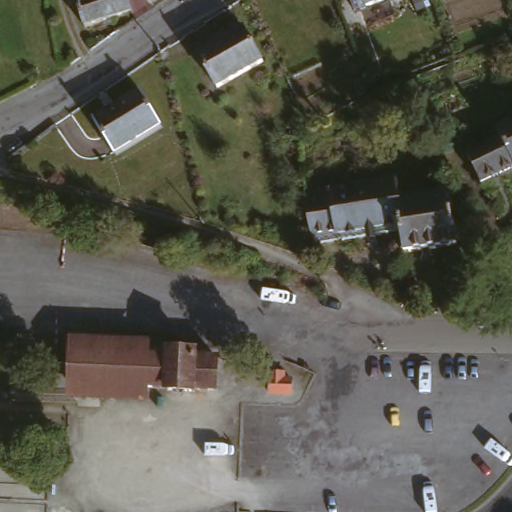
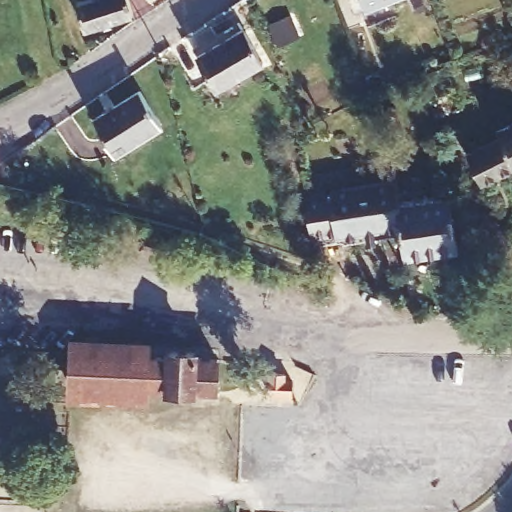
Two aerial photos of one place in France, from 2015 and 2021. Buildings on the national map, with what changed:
unchanged [(136,13),(90,27),(82,0),(132,0),(136,13)]
unchanged [(363,6),(361,0),(380,0),(363,6)]
unchanged [(214,86),(195,50),(243,26),(261,62),(214,86)]
unchanged [(112,151),(93,115),(141,90),(159,125),(112,151)]
unchanged [(504,134),(512,130),(512,162),(507,143),(504,134)]
unchanged [(476,160),(507,143),(512,162),(512,175),(493,187),(476,160)]
unchanged [(402,209),(406,232),(343,243),(342,241),(320,244),(312,197),(337,193),(338,195),(402,186),(406,208),(402,209)]
unchanged [(461,250),(411,259),(406,232),(402,209),(406,208),(425,205),(453,201),(461,250)]
unchanged [(73,336),(164,338),(163,345),(221,350),(220,393),(154,389),(154,402),(72,398),(73,336)]
unchanged [(286,379),(286,393),(263,393),(263,379),(286,379)]
unchanged [(13,440),(13,463),(0,462),(0,439),(13,440)]

